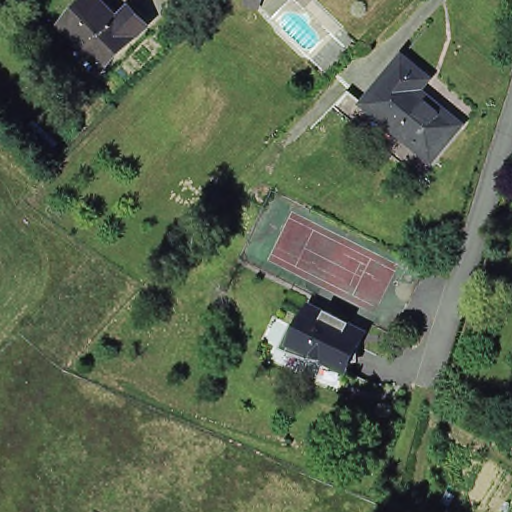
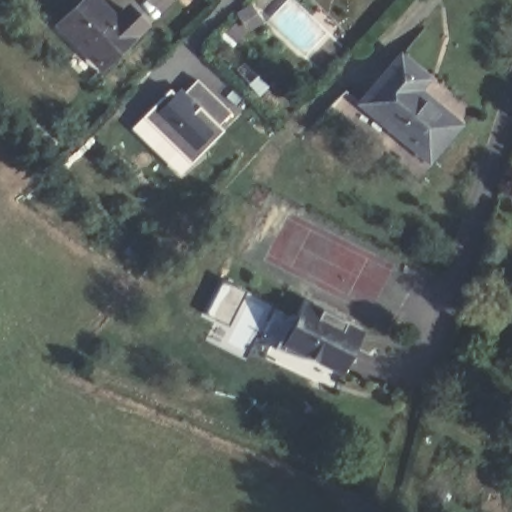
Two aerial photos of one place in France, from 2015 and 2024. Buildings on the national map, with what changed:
unchanged [(100,68),(56,26),(81,0),(94,0),(113,18),(123,8),(141,25),(100,68)]
demolished [(264,0),(261,8),(249,4),(250,0),(264,0)]
unchanged [(397,64),(422,85),(413,96),(455,131),(426,166),(358,111),(397,64)]
new [(172,91),(180,100),(199,81),(233,115),(220,128),(225,133),(207,151),(202,146),(188,161),(146,121),(135,131),(172,91)]
new [(146,121),(188,161),(202,146),(207,151),(182,177),(135,131),(146,121)]
unchanged [(296,324),(303,309),(319,316),(323,307),(348,320),(363,327),(359,336),(344,367),(292,352),(276,345),(280,340),(290,321),(296,324)]

